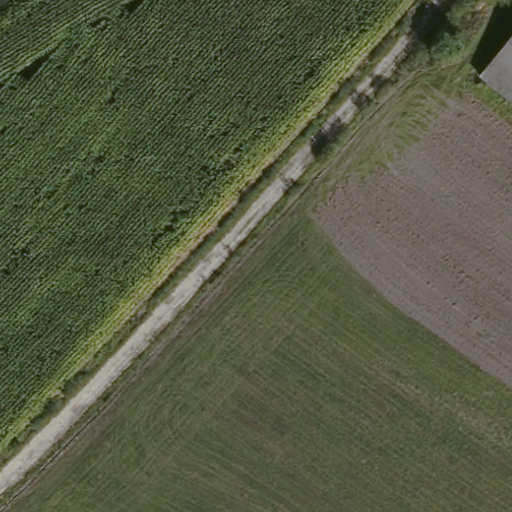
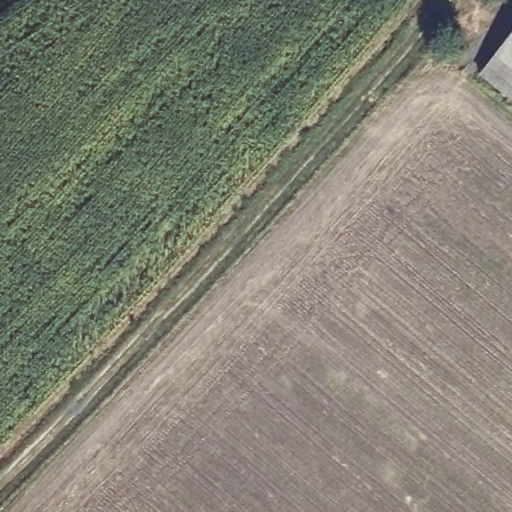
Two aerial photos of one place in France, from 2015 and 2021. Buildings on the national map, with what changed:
unchanged [(484,74),(512,38),(512,95),(484,74)]

